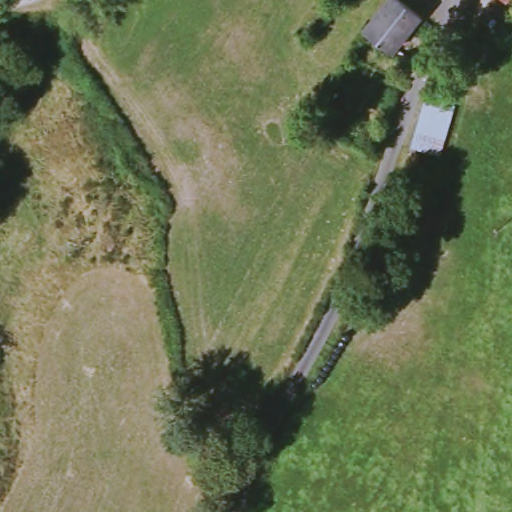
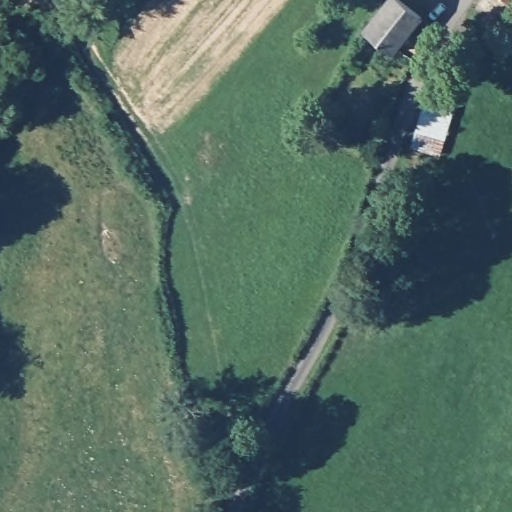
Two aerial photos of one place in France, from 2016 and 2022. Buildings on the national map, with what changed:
unchanged [(509,0),(512,0),(511,1),(509,0)]
unchanged [(421,26),(394,62),(365,40),(393,4),(421,26)]
unchanged [(456,99),(440,155),(412,145),(428,90),(456,99)]

